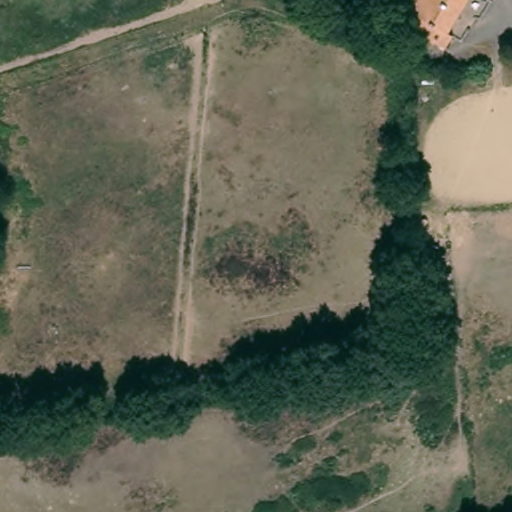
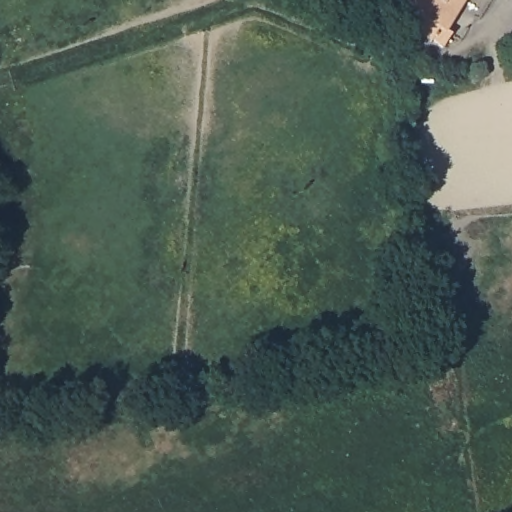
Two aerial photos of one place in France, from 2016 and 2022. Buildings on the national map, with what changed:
unchanged [(446,25),(450,27),(442,41),(401,21),(408,5),(417,9),(420,1),(417,0),(460,0),(446,25)]

